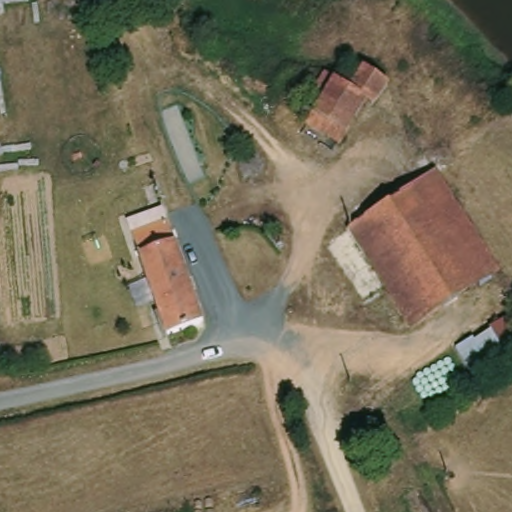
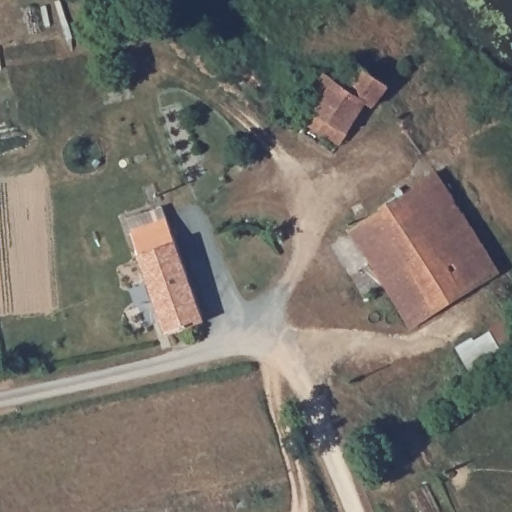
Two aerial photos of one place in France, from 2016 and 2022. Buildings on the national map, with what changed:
unchanged [(303,96),(307,99),(309,94),(324,71),(337,80),(343,70),(347,69),(352,70),(358,74),(363,68),(387,84),(372,106),(364,102),(338,143),(307,124),(292,114),(303,96)]
unchanged [(408,325),(384,286),(360,298),(323,241),(422,175),(431,170),(494,273),(485,277),(408,325)]
unchanged [(200,319),(162,333),(122,218),(157,205),(200,319)]
unchanged [(512,361),(475,382),(455,343),(512,314),(512,315),(512,361)]

